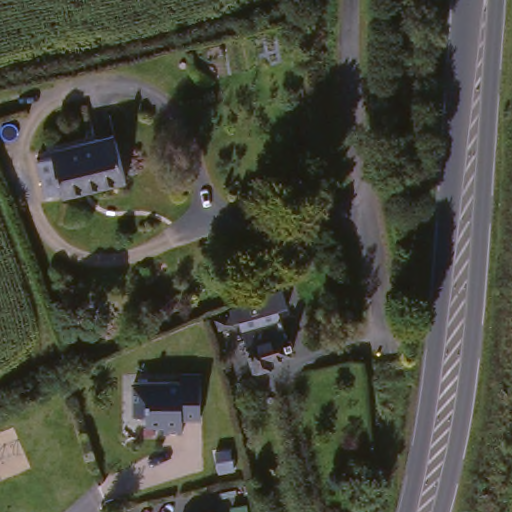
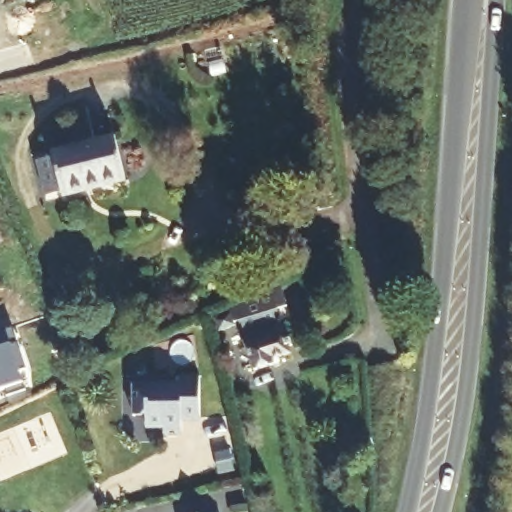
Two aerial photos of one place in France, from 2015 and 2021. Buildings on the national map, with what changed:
unchanged [(51,189),(45,160),(60,156),(58,152),(123,135),(133,177),(91,187),(91,191),(70,196),(69,193),(53,196),(51,189)]
unchanged [(248,300),(286,285),(291,302),(238,318),(238,321),(222,326),(218,314),(248,302),(248,300)]
unchanged [(281,355),(283,358),(257,366),(252,351),(249,352),(248,346),(251,345),(246,327),(284,315),(294,350),(281,355)]
new [(11,326),(25,368),(18,370),(24,388),(5,395),(3,388),(0,389),(0,329),(11,326)]
unchanged [(178,387),(178,379),(198,379),(198,415),(179,415),(179,437),(162,437),(162,427),(145,427),(145,406),(133,406),(133,387),(178,387)]

